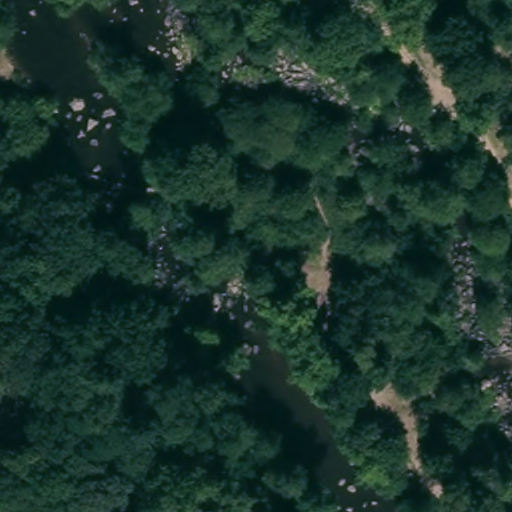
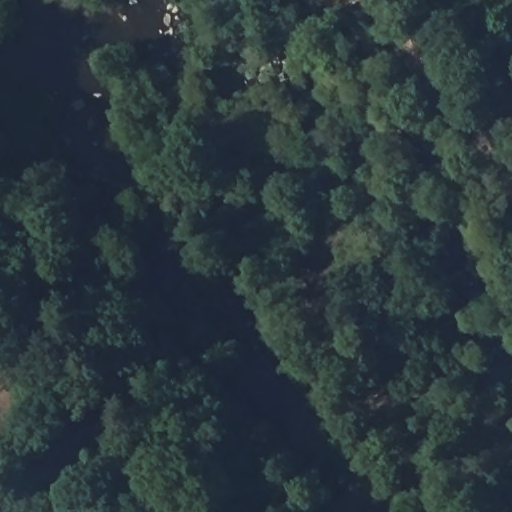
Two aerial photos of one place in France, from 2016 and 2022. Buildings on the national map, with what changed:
[]

